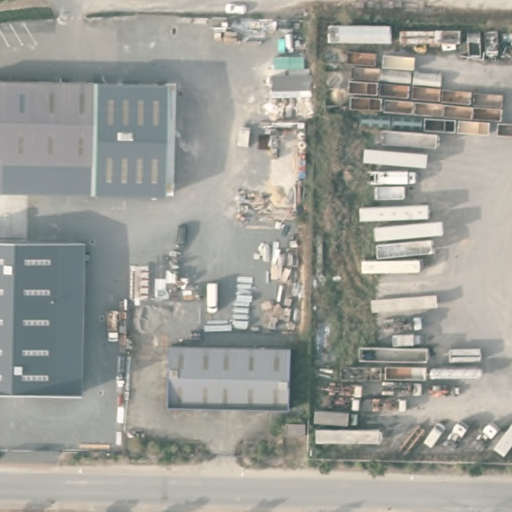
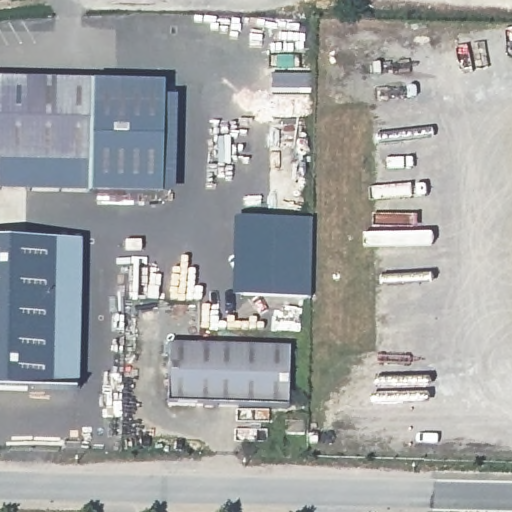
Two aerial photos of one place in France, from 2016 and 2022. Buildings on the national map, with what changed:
unchanged [(89,165),(0,163),(0,81),(91,84),(89,165)]
unchanged [(91,84),(126,85),(181,87),(178,201),(122,199),(88,198),(89,165),(91,84)]
unchanged [(88,198),(0,195),(0,163),(89,165),(88,198)]
new [(244,218),(315,219),(313,297),(243,296),(244,218)]
unchanged [(0,389),(0,239),(83,241),(80,390),(0,389)]
unchanged [(292,404),(170,402),(172,339),(292,341),(292,404)]
unchanged [(306,435),(288,434),(288,422),(306,423),(306,435)]

